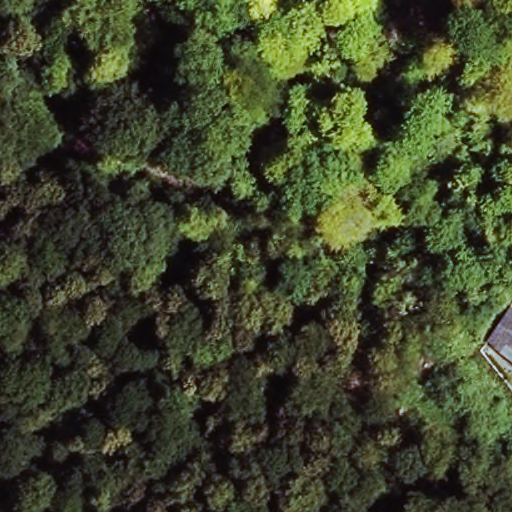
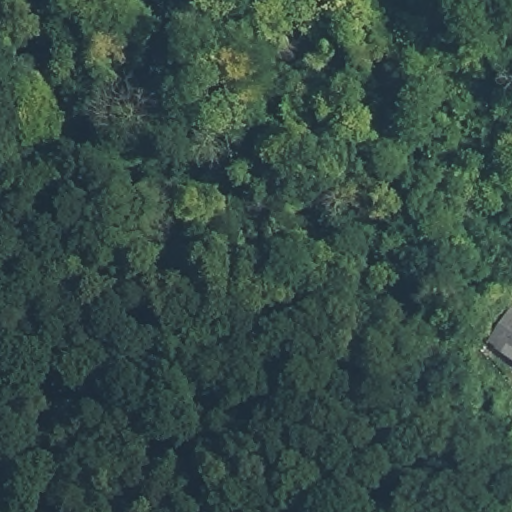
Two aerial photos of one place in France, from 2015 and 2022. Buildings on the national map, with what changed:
unchanged [(512,317),(512,357),(490,343),(507,314),(512,317)]

